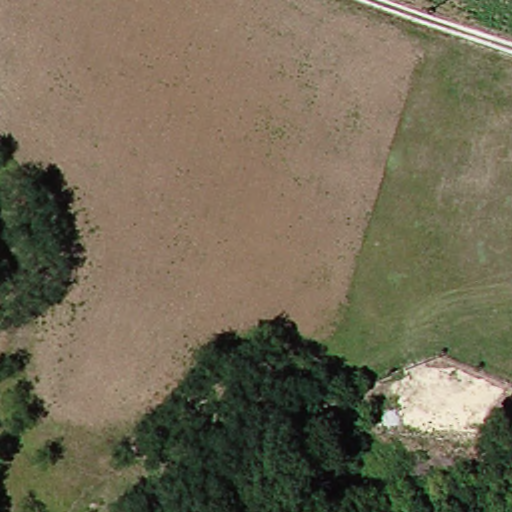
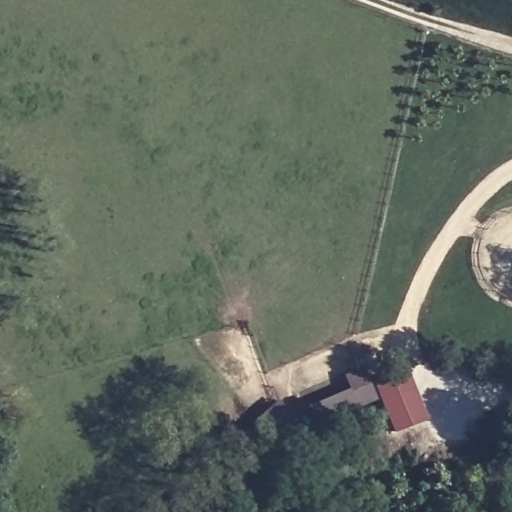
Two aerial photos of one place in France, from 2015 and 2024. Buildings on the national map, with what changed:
new [(342,376),(362,368),(370,388),(407,373),(426,420),(388,434),(375,400),(348,411),(313,425),(307,407),(348,391),(342,376)]

